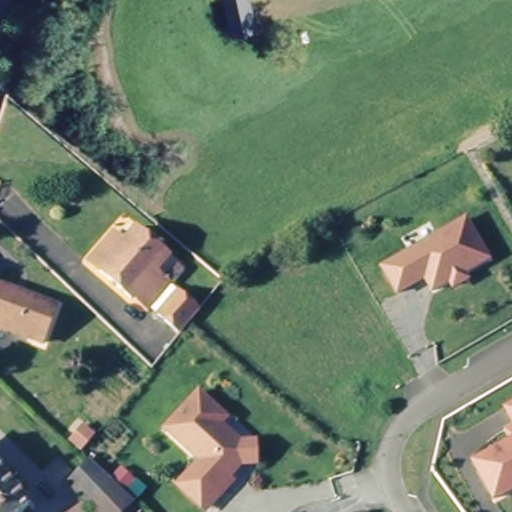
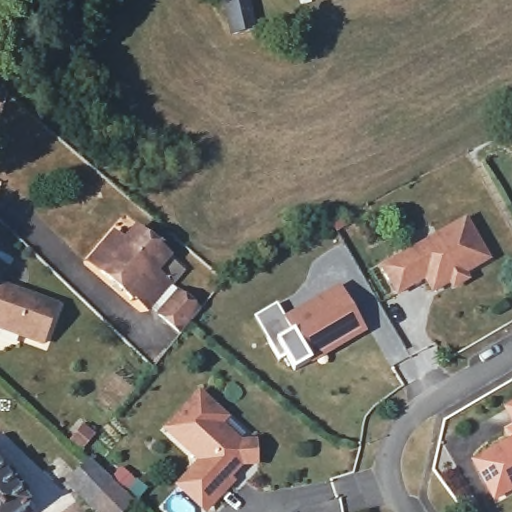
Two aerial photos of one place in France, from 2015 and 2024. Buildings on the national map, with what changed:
unchanged [(235,30),(228,0),(251,0),(256,25),(235,30)]
unchanged [(456,289),(451,282),(436,292),(426,279),(401,296),(385,271),(466,219),(489,257),(465,273),(469,280),(456,289)]
unchanged [(169,258),(156,272),(170,289),(151,310),(138,297),(133,299),(101,271),(90,260),(114,233),(126,244),(139,231),(169,258)]
new [(285,318),(339,284),(367,331),(313,361),(294,372),(285,357),(279,361),(255,318),(278,304),(285,318)]
unchanged [(0,328),(0,285),(56,308),(42,345),(0,328)]
unchanged [(177,328),(159,312),(178,292),(195,309),(177,328)]
unchanged [(185,474),(199,462),(167,425),(204,392),(228,419),(222,425),(242,445),(256,445),(257,467),(241,466),(223,483),(227,488),(210,502),(200,512),(199,512),(174,483),(185,474)]
unchanged [(505,406),(512,403),(512,419),(505,406)]
unchanged [(80,454),(70,445),(84,431),(93,441),(80,454)]
unchanged [(496,498),(473,461),(512,438),(512,488),(496,498)]
unchanged [(65,484),(85,461),(106,484),(128,504),(121,512),(94,512),(91,508),(65,484)]
unchanged [(140,482),(131,492),(117,479),(126,469),(140,482)]
unchanged [(0,512),(0,480),(26,512),(0,512)]

